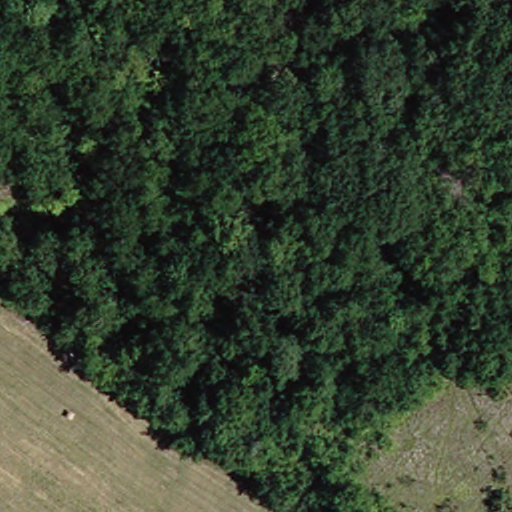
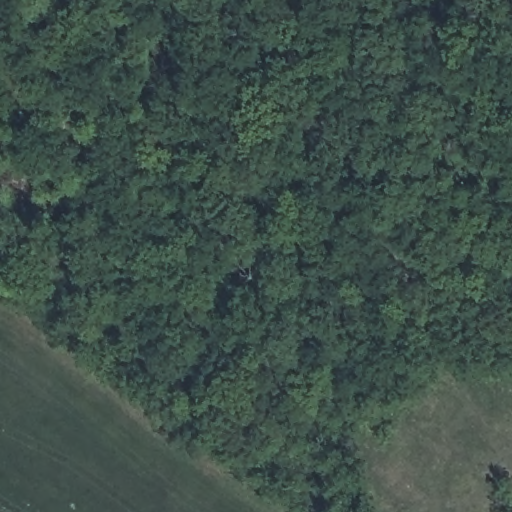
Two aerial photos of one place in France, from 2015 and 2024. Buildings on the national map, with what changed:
[]

